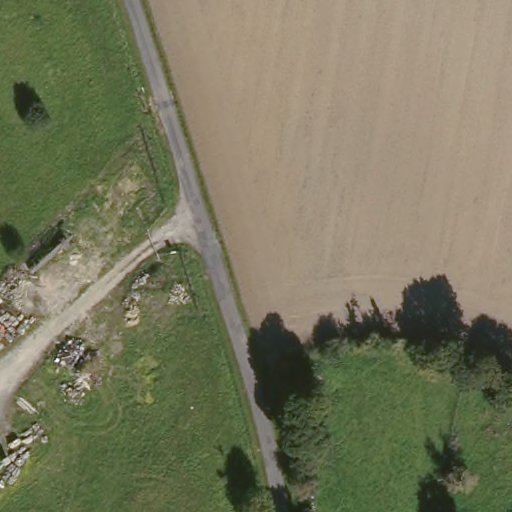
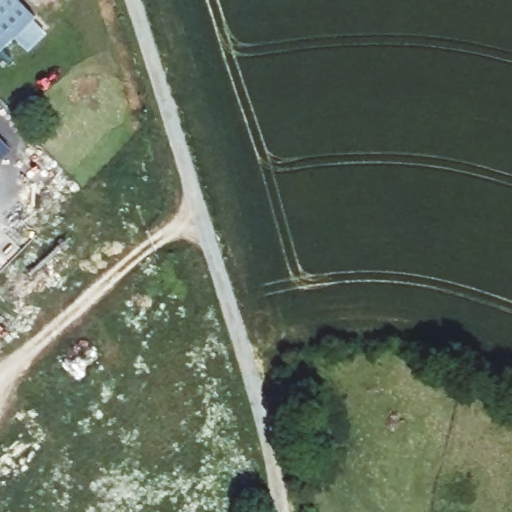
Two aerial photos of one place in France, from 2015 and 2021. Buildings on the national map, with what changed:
new [(36,19),(34,20),(47,34),(29,52),(16,37),(0,51),(0,0),(19,0),(36,19)]
unchanged [(11,151),(0,161),(0,138),(11,151)]

